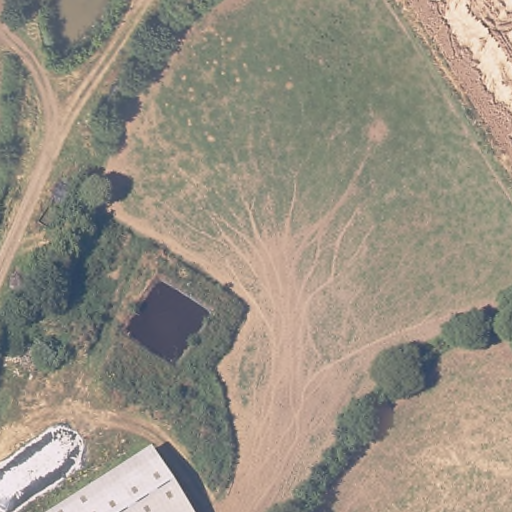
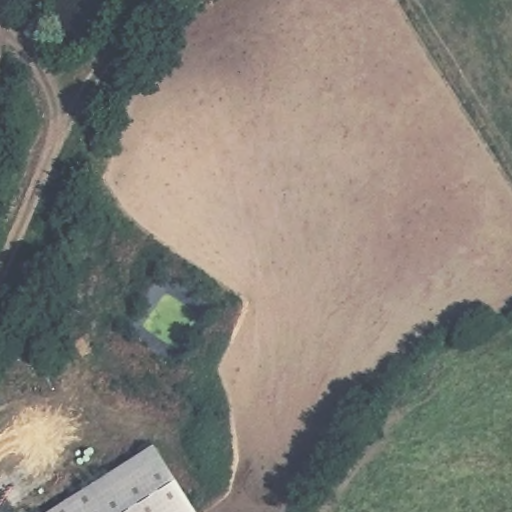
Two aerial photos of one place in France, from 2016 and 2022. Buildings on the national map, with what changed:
unchanged [(192,512),(73,512),(156,458),(192,512)]

